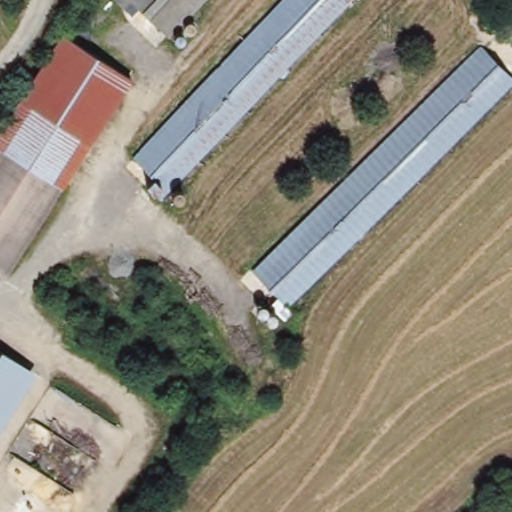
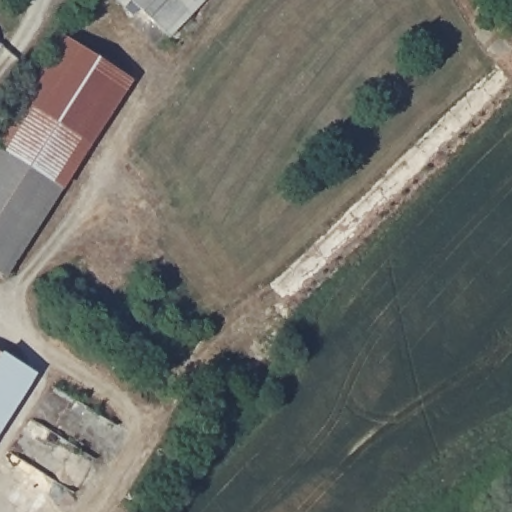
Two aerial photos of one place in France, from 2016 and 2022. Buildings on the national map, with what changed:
unchanged [(124,9),(114,1),(115,0),(133,0),(124,9)]
unchanged [(182,28),(174,37),(166,30),(135,0),(208,0),(182,28)]
demolished [(173,188),(165,181),(157,190),(148,181),(156,172),(136,153),(284,0),(354,0),(173,188)]
unchanged [(74,35),(131,75),(79,150),(56,184),(0,148),(0,141),(47,74),(74,35)]
demolished [(305,287),(288,303),(253,266),(484,49),(488,45),(493,50),(512,69),(512,92),(381,216),(305,287)]
unchanged [(493,50),(492,50),(484,49),(488,45),(493,50)]
unchanged [(56,184),(63,188),(7,273),(0,270),(0,148),(56,184)]
unchanged [(37,372),(0,432),(0,350),(37,372)]

